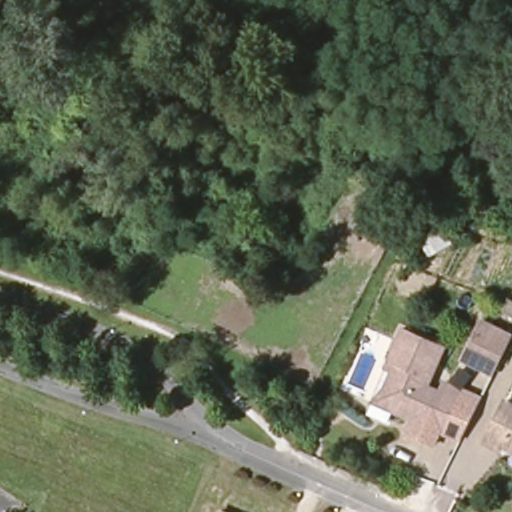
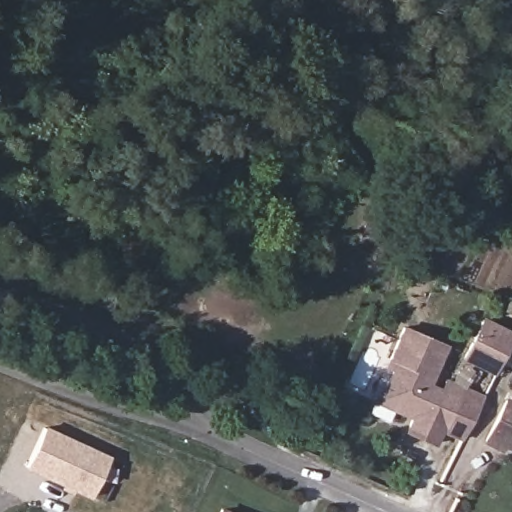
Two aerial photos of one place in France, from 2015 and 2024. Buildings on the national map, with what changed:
unchanged [(496,374),(466,359),(485,320),(512,332),(512,341),(496,374)]
unchanged [(462,388),(443,431),(428,425),(411,417),(414,412),(392,402),(392,388),(403,364),(396,361),(409,330),(445,345),(428,385),(442,391),(446,381),(462,388)]
unchanged [(511,443),(508,447),(494,440),(512,401),(512,444),(511,443)]
new [(110,456),(90,497),(25,468),(43,426),(110,456)]
unchanged [(220,507),(232,512),(217,512),(220,507)]

